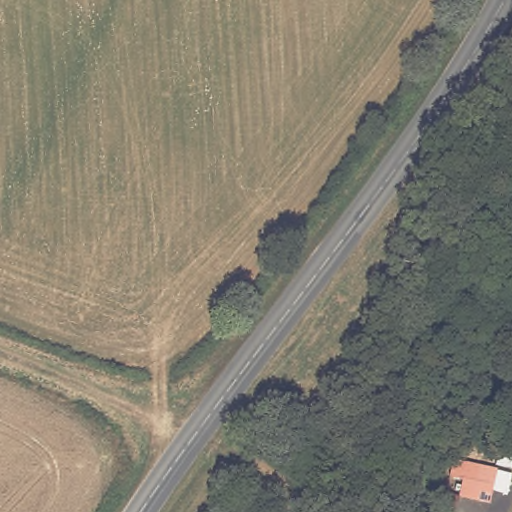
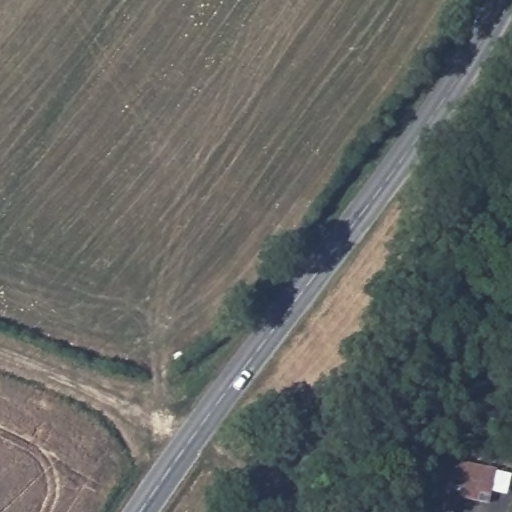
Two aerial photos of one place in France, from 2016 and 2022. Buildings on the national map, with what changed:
unchanged [(500,505),(468,497),(476,464),(506,472),(500,505)]
unchanged [(459,512),(456,512),(456,511),(459,512)]

